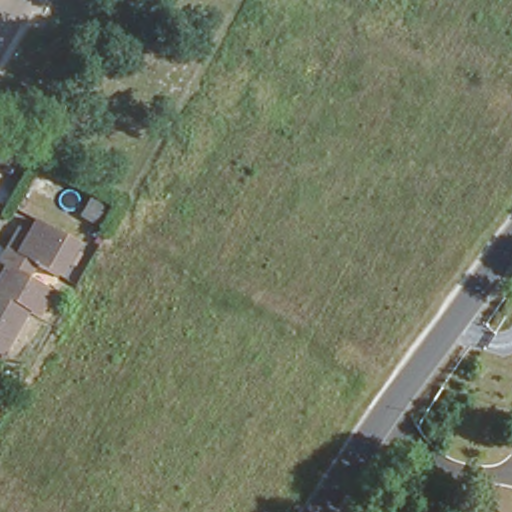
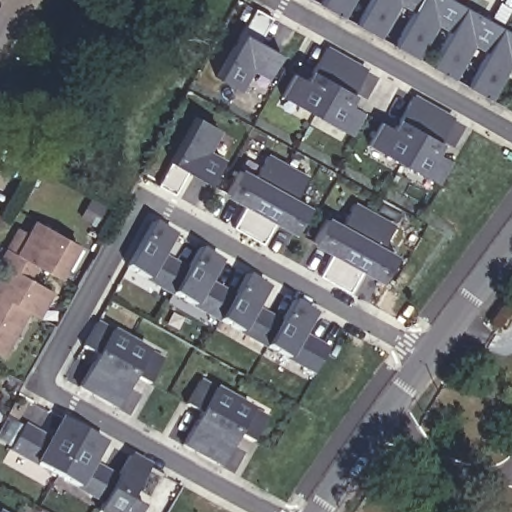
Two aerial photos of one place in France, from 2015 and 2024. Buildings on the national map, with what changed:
new [(321,3),(323,0),(355,0),(344,18),(321,3)]
new [(493,100),(468,87),(489,50),(476,45),(458,79),(433,66),(452,30),(439,25),(421,59),(395,46),(415,10),(401,3),(383,36),(358,24),(371,0),(454,0),(512,32),(512,66),(511,66),(493,100)]
new [(512,7),(512,8),(511,8),(512,7)]
new [(251,70),(239,90),(218,76),(242,31),(255,9),(271,18),(259,41),(281,54),(266,78),(251,70)]
new [(365,68),(354,94),(349,104),(361,111),(349,134),(280,96),(293,73),(305,80),(312,71),(325,46),(365,68)]
new [(453,117),(441,143),(436,153),(449,161),(436,183),(368,143),(380,122),(393,129),(399,119),(414,95),(453,117)]
new [(158,184),(170,163),(197,116),(218,129),(206,149),(221,158),(209,183),(186,170),(173,193),(158,184)]
new [(233,227),(244,207),(225,196),(240,169),(252,175),(266,153),(306,175),(295,199),(309,206),(294,233),(273,222),(262,243),(233,227)]
new [(319,275),(330,254),(312,244),(326,216),(342,225),(354,201),(393,224),(383,247),(397,256),(381,282),(359,271),(349,291),(319,275)]
unchanged [(36,320),(25,315),(1,359),(0,358),(0,284),(7,270),(0,266),(0,254),(14,229),(25,235),(33,222),(75,245),(58,279),(35,267),(27,281),(51,293),(36,320)]
new [(198,247),(220,262),(209,281),(234,296),(247,275),(268,287),(256,308),(281,323),(292,301),(314,315),(303,334),(328,347),(314,374),(291,360),(269,345),(243,332),(220,318),(197,305),(174,292),(149,278),(128,266),(152,222),(173,234),(162,255),(188,268),(198,247)]
new [(95,322),(110,330),(149,350),(163,358),(149,385),(135,376),(115,411),(76,388),(96,356),(81,346),(95,322)]
new [(213,387),(252,409),(266,416),(253,442),(240,435),(219,469),(180,445),(200,415),(186,405),(199,380),(213,387)]
new [(49,437),(60,418),(106,443),(95,464),(119,475),(130,454),(149,464),(131,498),(146,506),(144,512),(98,512),(104,502),(81,489),(34,464),(8,450),(24,423),(49,437)]

